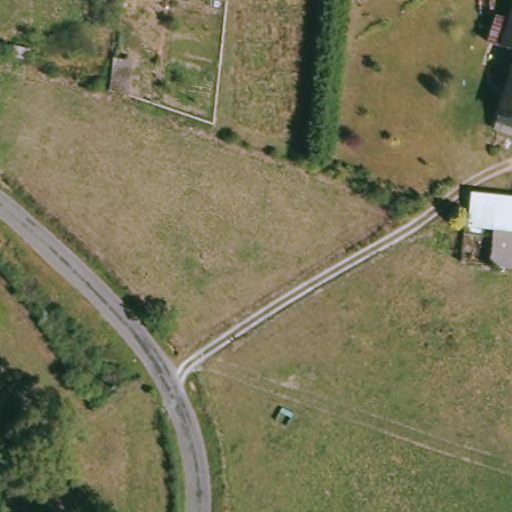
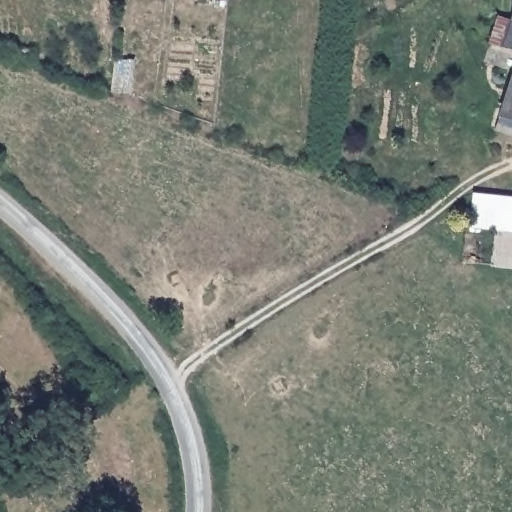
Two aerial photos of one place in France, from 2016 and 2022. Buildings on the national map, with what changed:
unchanged [(500,5),(512,9),(512,40),(492,31),(500,5)]
unchanged [(496,114),(512,62),(512,126),(496,120),(496,114)]
unchanged [(490,266),(491,260),(492,235),(457,231),(459,216),(467,219),(471,186),(512,189),(512,268),(490,266)]

